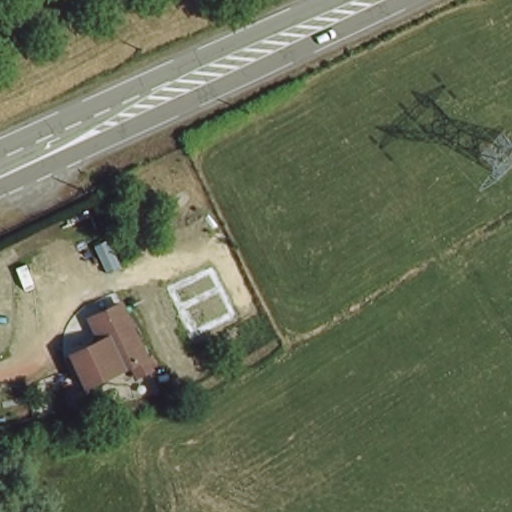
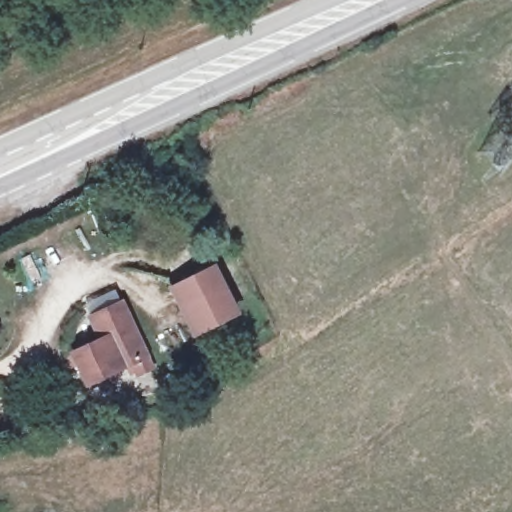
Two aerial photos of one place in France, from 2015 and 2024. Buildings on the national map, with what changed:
new [(214,266),(238,316),(192,338),(167,288),(214,266)]
unchanged [(118,370),(88,383),(75,353),(104,340),(94,316),(125,303),(148,357),(118,370)]

